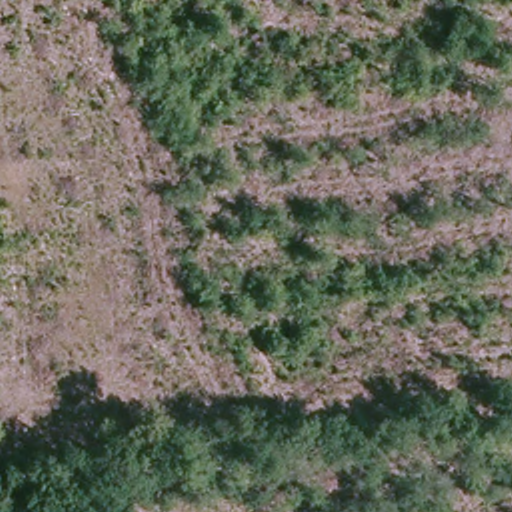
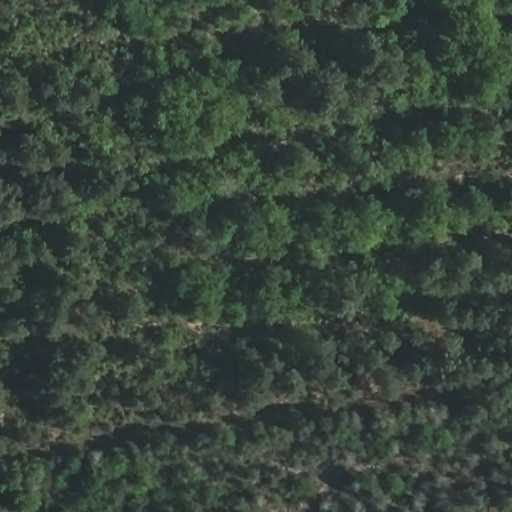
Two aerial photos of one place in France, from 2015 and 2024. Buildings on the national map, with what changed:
[]

